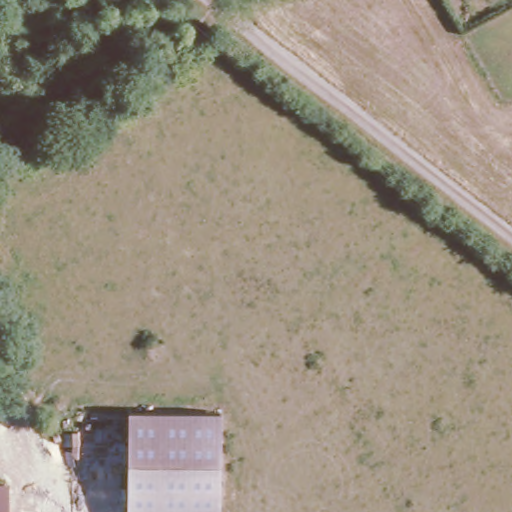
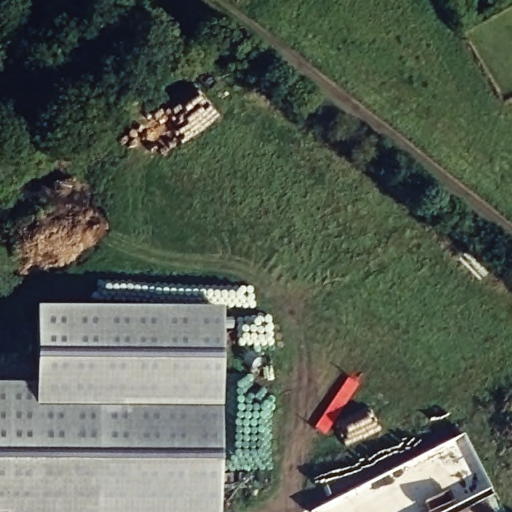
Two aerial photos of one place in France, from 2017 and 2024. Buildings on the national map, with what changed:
new [(37,311),(221,310),(221,512),(0,512),(0,386),(38,386),(37,311)]
demolished [(221,414),(219,512),(126,512),(124,415),(221,414)]

